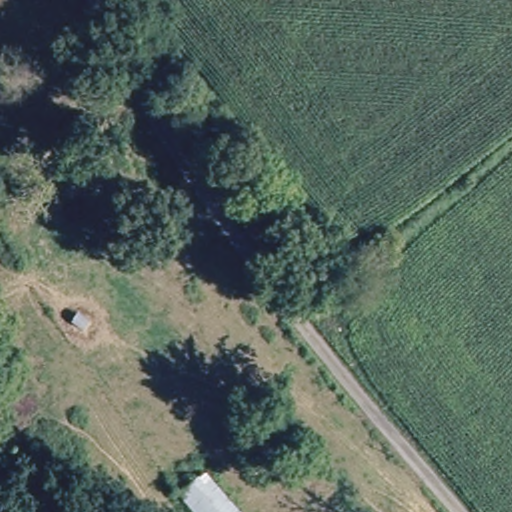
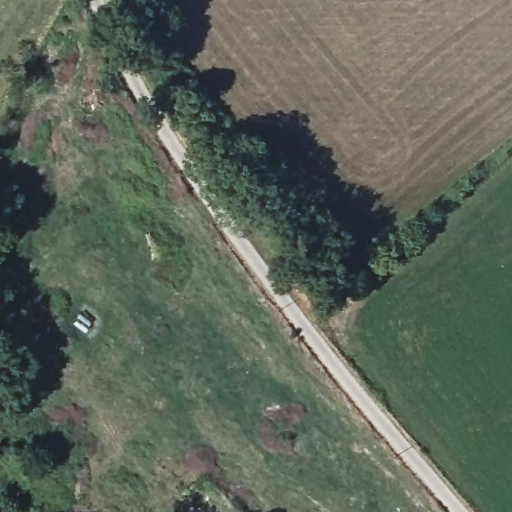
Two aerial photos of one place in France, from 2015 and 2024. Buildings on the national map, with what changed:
demolished [(176,493),(206,467),(243,512),(192,512),(176,493)]

